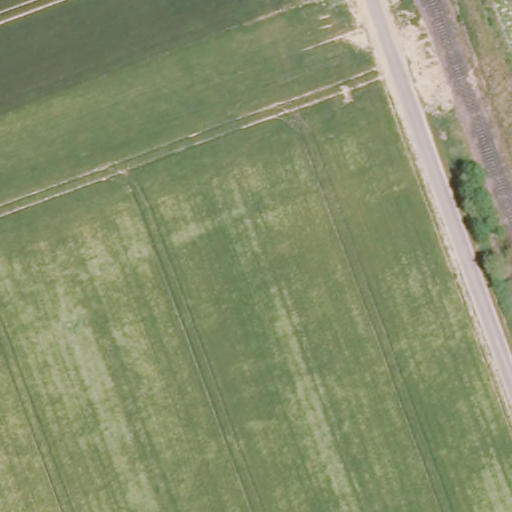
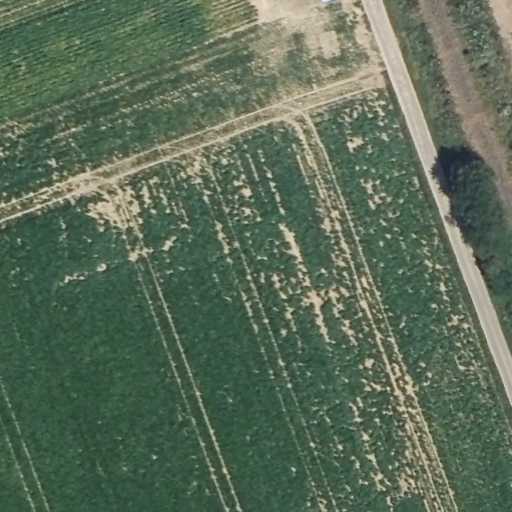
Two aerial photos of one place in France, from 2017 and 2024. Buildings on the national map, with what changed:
unchanged [(328,4),(326,0),(336,0),(328,4)]

